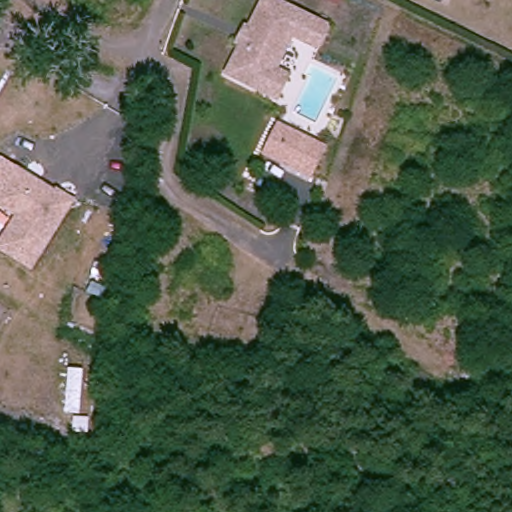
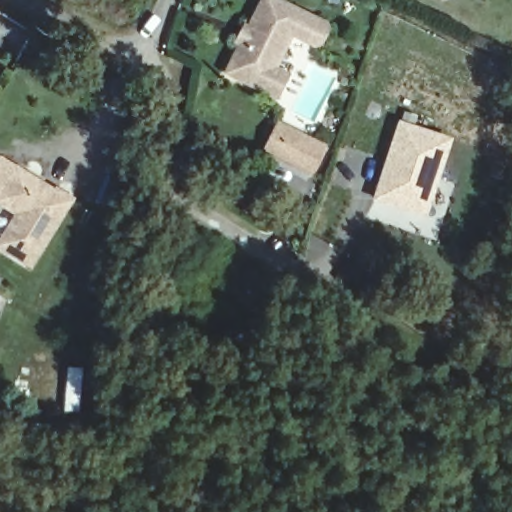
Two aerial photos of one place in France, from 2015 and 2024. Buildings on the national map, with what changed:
unchanged [(260,89),(224,66),(241,39),(237,36),(245,23),(249,26),(264,0),(281,0),(326,27),(327,33),(318,46),(313,47),(293,34),(273,67),(286,75),(273,96),(260,89)]
new [(398,121),(452,139),(426,219),(372,201),(398,121)]
unchanged [(306,177),(262,150),(270,136),(277,124),(303,140),(322,151),(306,177)]
unchanged [(0,207),(0,194),(17,164),(76,201),(31,271),(0,249),(0,240),(15,216),(0,207)]

